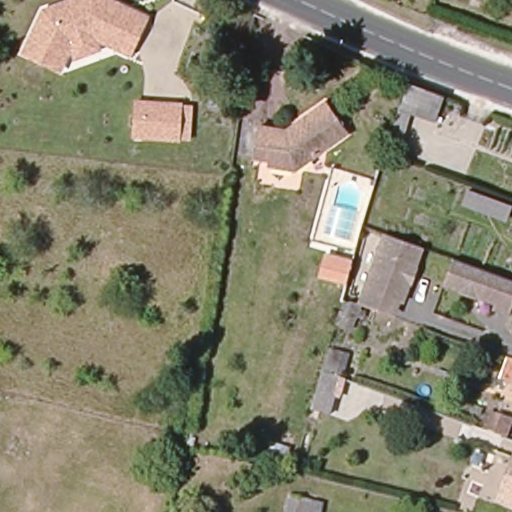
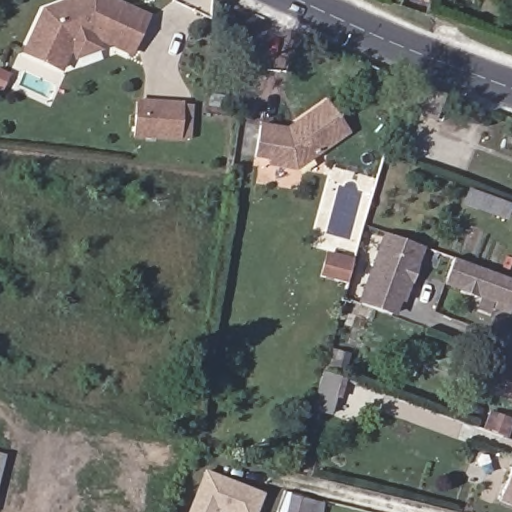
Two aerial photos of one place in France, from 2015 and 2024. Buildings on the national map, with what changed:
unchanged [(74,46),(64,70),(28,53),(47,11),(78,0),(112,0),(150,18),(134,54),(99,38),(104,49),(79,58),(74,46)]
unchanged [(439,124),(410,115),(408,131),(396,127),(407,81),(446,96),(439,124)]
unchanged [(272,166),(271,160),(254,158),(258,126),(284,128),(297,120),(324,100),(348,131),(312,158),(297,169),(272,166)]
unchanged [(184,105),(184,111),(183,139),(138,137),(139,106),(139,102),(184,105)]
unchanged [(510,224),(463,207),(470,187),(512,203),(512,219),(510,224)]
unchanged [(402,244),(422,251),(400,306),(394,304),(389,319),(359,308),(385,238),(402,244)]
unchanged [(351,294),(322,288),(327,259),(358,265),(351,294)]
unchanged [(456,264),(512,284),(512,310),(509,317),(493,311),(495,305),(444,287),(453,263),(456,264)]
unchanged [(334,379),(325,406),(317,403),(325,376),(334,379)]
unchanged [(471,442),(476,426),(486,429),(492,413),(509,419),(507,425),(512,428),(508,437),(507,437),(503,435),(497,452),(471,442)]
unchanged [(498,500),(512,464),(512,506),(498,500)]
unchanged [(444,482),(437,480),(438,474),(445,477),(444,482)]
new [(264,497),(259,512),(193,512),(208,475),(264,497)]
unchanged [(293,489),(329,499),(325,512),(286,512),(293,489)]

